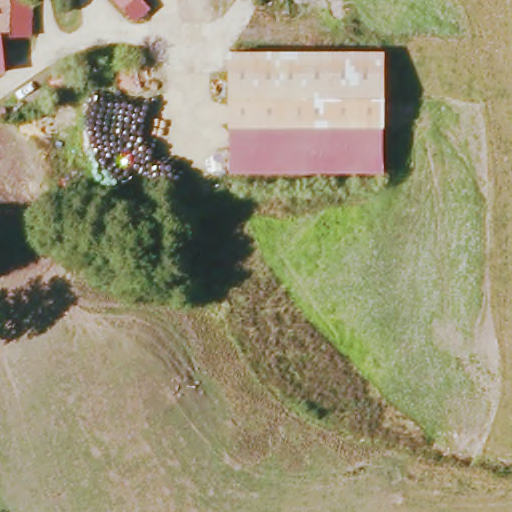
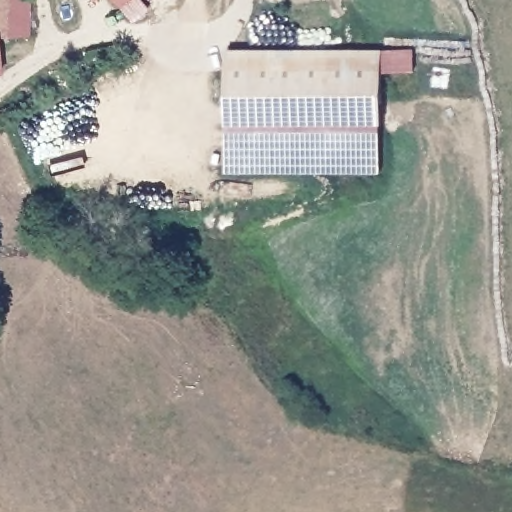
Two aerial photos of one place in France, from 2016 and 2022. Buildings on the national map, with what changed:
unchanged [(0,34),(0,0),(34,0),(33,40),(0,34)]
unchanged [(133,25),(113,0),(145,0),(151,8),(133,25)]
unchanged [(383,51),(381,177),(223,179),(232,51),(383,51)]

